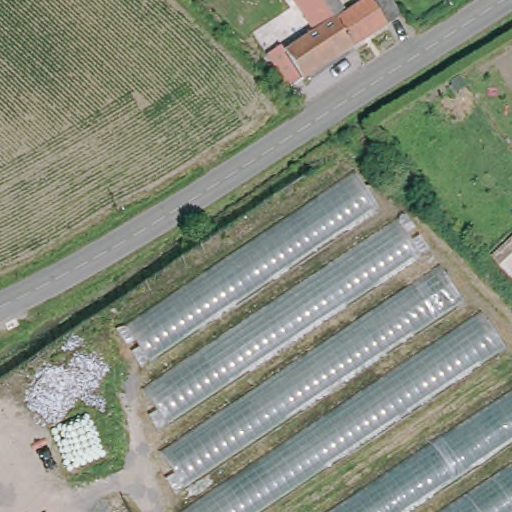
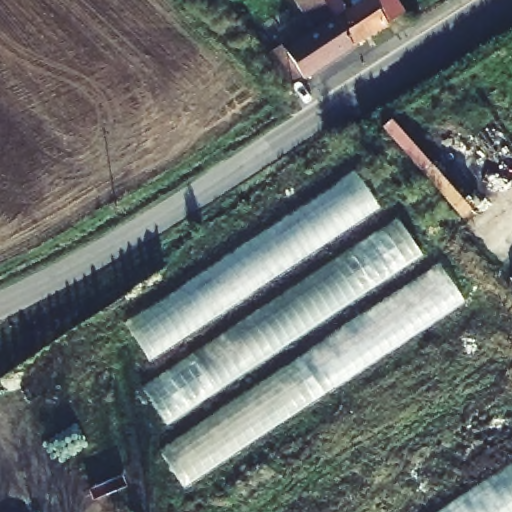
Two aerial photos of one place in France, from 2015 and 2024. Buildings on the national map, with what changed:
unchanged [(298,80),(284,61),(298,52),(294,46),(333,19),(319,0),(334,0),(361,41),(298,80)]
new [(333,19),(314,32),(294,0),(319,0),(333,19)]
unchanged [(334,0),(350,0),(353,5),(361,0),(383,0),(396,19),(361,41),(334,0)]
unchanged [(363,164),(386,199),(153,357),(129,322),(363,164)]
unchanged [(405,209),(429,244),(171,420),(146,385),(405,209)]
unchanged [(444,256),(467,289),(189,483),(166,449),(444,256)]
demolished [(509,339),(257,512),(182,512),(484,303),(509,339)]
demolished [(399,512),(327,512),(512,384),(512,434),(399,512)]
unchanged [(511,512),(437,512),(512,463),(512,511),(511,512)]

